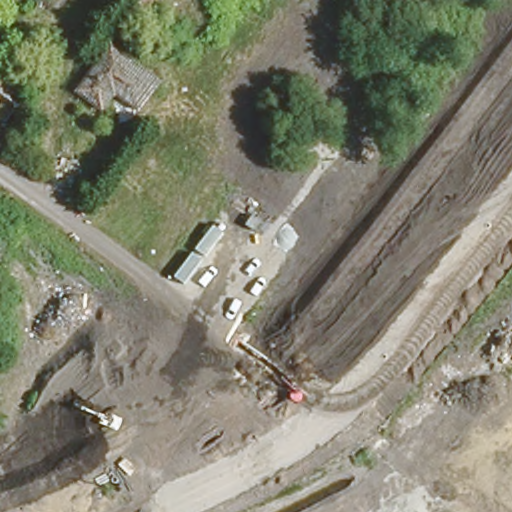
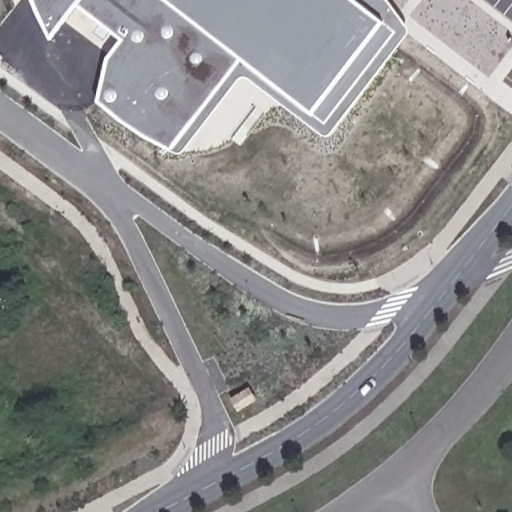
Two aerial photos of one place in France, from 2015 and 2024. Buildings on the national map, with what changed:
new [(248,78),(245,77),(242,78),(239,81),(185,151),(182,154),(179,154),(173,153),(123,124),(97,102),(107,59),(121,40),(76,6),(50,39),(40,20),(32,3),(31,0),(389,0),(408,27),(409,29),(409,32),(407,39),(332,133),(329,135),(327,136),(324,136),(319,133),(250,79),(248,78)]
demolished [(69,41),(38,17),(47,0),(67,0),(87,14),(69,41)]
demolished [(140,116),(115,98),(102,112),(74,91),(110,42),(164,81),(140,116)]
demolished [(6,124),(0,119),(0,70),(27,92),(6,124)]
demolished [(45,243),(185,349),(149,361),(5,255),(45,243)]
demolished [(427,378),(445,357),(455,366),(480,342),(507,356),(463,411),(427,378)]
demolished [(242,371),(261,429),(235,435),(218,380),(242,371)]
demolished [(170,463),(125,479),(99,407),(78,412),(71,395),(133,372),(170,463)]

